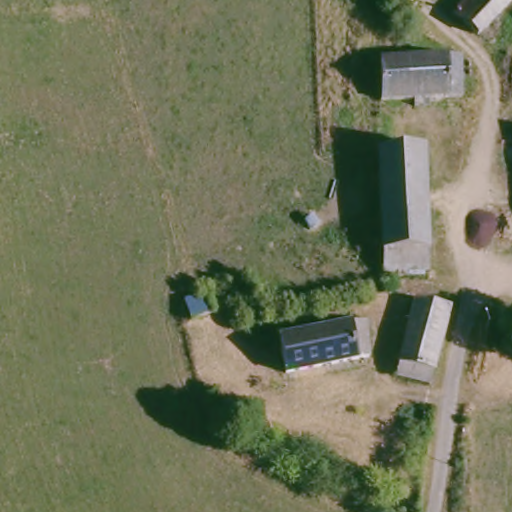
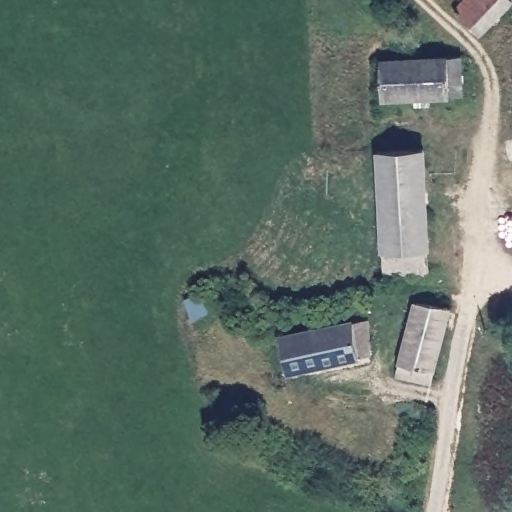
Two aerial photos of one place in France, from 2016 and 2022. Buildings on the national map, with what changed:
unchanged [(482,41),(458,19),(474,0),(512,0),(512,9),(482,41)]
unchanged [(459,98),(380,101),(379,62),(459,57),(459,98)]
unchanged [(389,277),(388,257),(381,155),(427,153),(432,256),(434,277),(389,277)]
unchanged [(399,381),(419,307),(452,313),(436,389),(399,381)]
unchanged [(285,374),(278,337),(367,321),(368,357),(285,374)]

